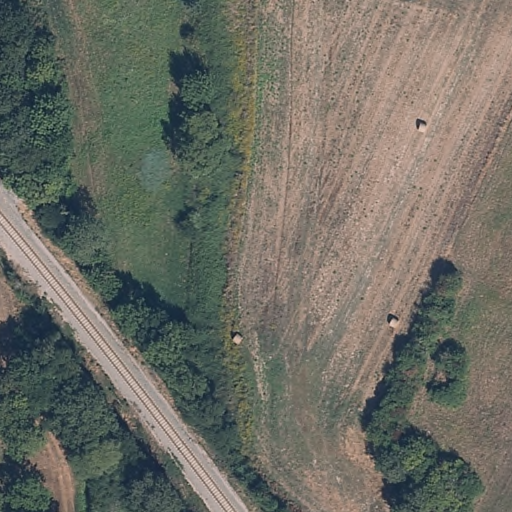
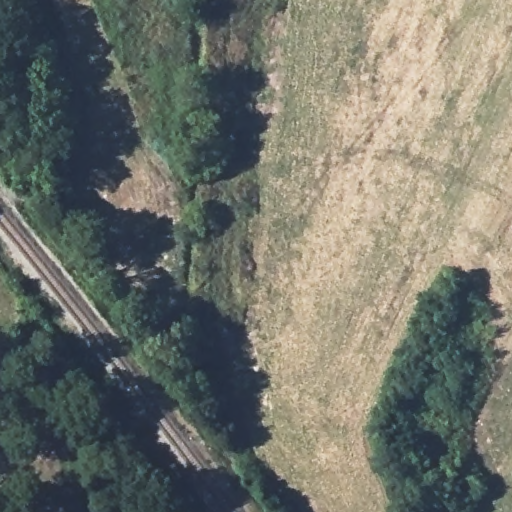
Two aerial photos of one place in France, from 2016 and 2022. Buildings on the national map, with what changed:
unchanged [(25,90),(13,42),(24,39),(35,88),(25,90)]

